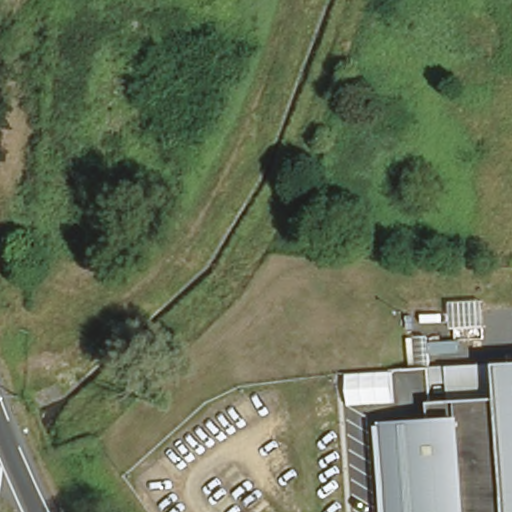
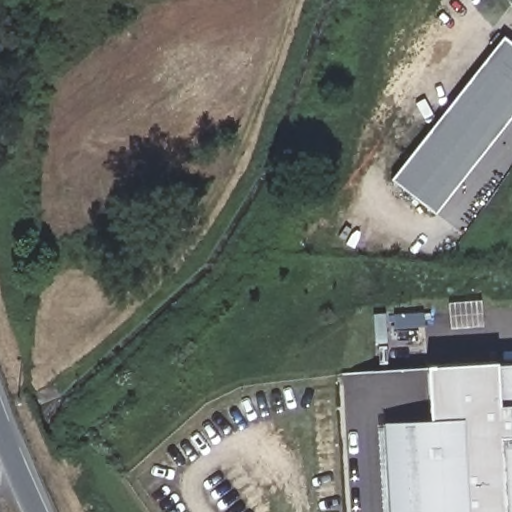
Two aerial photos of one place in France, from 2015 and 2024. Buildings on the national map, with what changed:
new [(504,36),(512,42),(512,117),(435,213),(391,178),(504,36)]
unchanged [(431,428),(430,408),(447,407),(444,373),(512,368),(512,512),(395,512),(389,433),(431,428)]
new [(431,418),(431,428),(389,433),(395,512),(389,512),(384,420),(431,418)]

